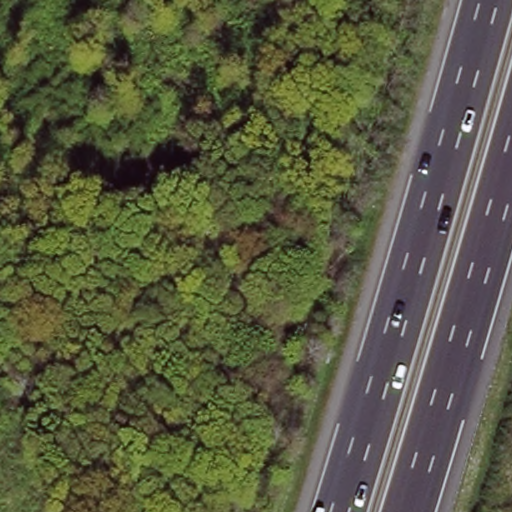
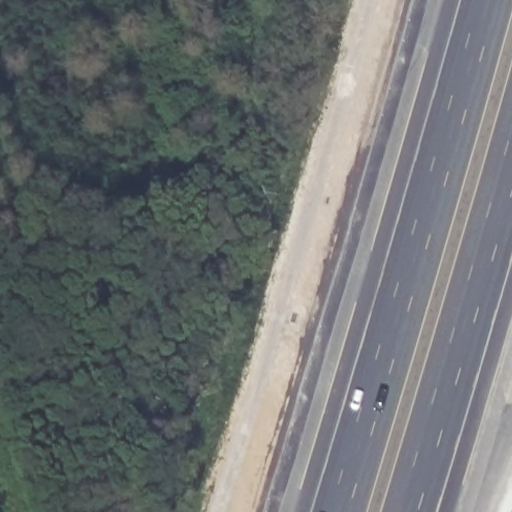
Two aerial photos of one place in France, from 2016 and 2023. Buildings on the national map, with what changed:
[]

